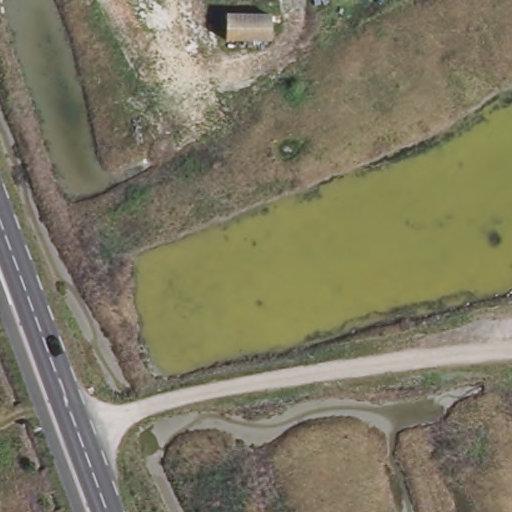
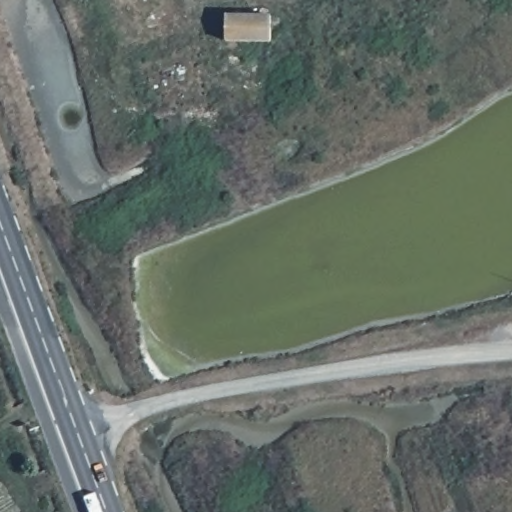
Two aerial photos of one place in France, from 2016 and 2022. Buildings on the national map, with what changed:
unchanged [(232,19),(277,20),(277,45),(231,44),(232,19)]

